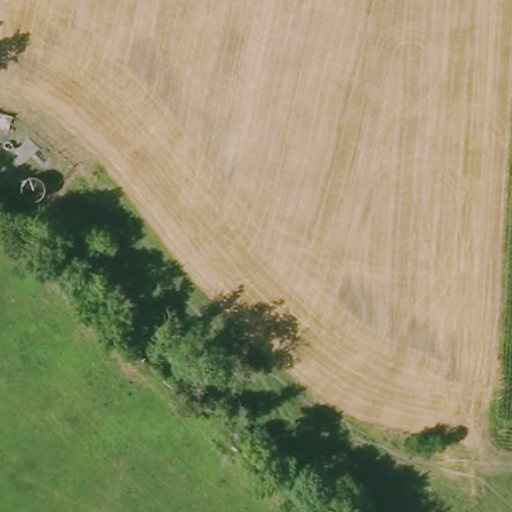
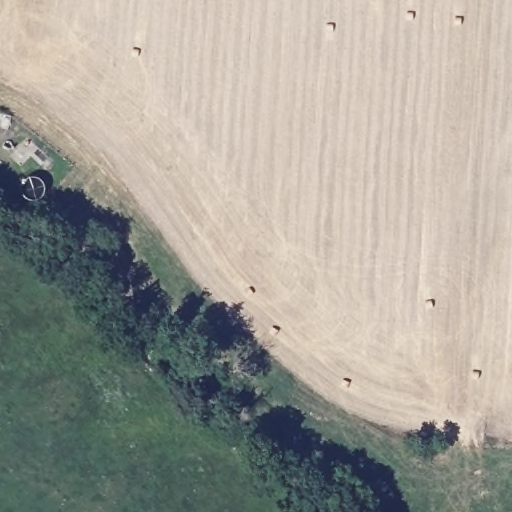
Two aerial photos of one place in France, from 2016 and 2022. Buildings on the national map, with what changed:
[]

